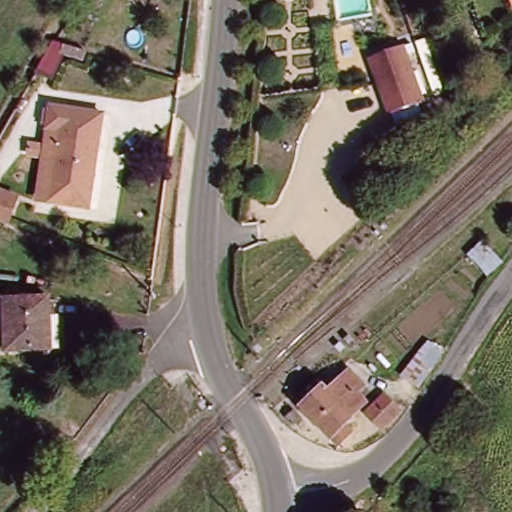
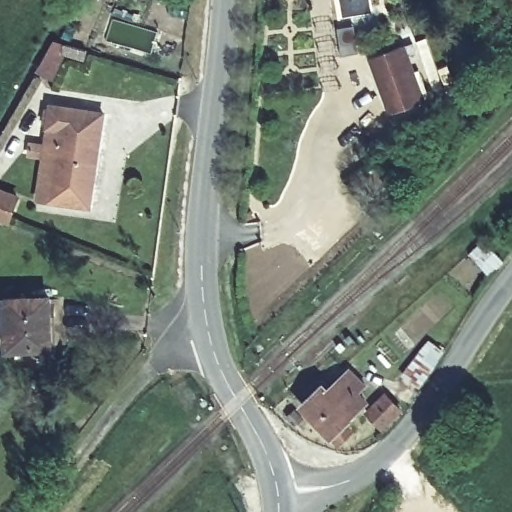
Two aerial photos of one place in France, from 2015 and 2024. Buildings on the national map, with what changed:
unchanged [(405,44),(424,100),(394,111),(374,55),(405,44)]
unchanged [(92,208),(38,200),(42,179),(47,178),(50,164),(42,163),(55,105),(92,110),(100,111),(90,185),(96,186),(92,208)]
unchanged [(0,220),(0,189),(17,196),(6,223),(0,220)]
unchanged [(49,319),(43,319),(44,353),(4,353),(3,300),(49,300),(49,319)]
unchanged [(296,408),(321,384),(325,388),(350,371),(365,383),(356,395),(365,403),(379,393),(399,410),(375,432),(360,416),(335,447),(296,408)]
unchanged [(305,424),(299,430),(290,421),(297,413),(305,424)]

